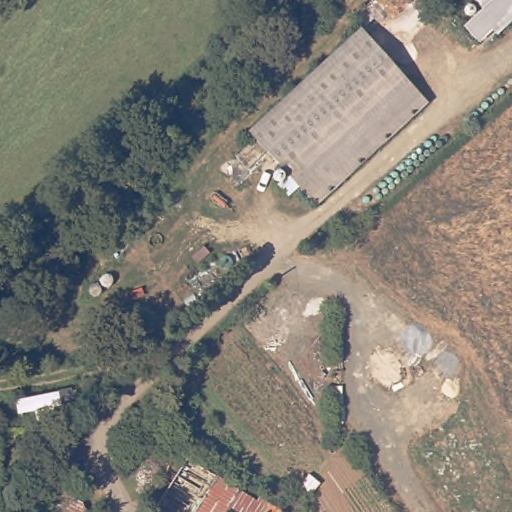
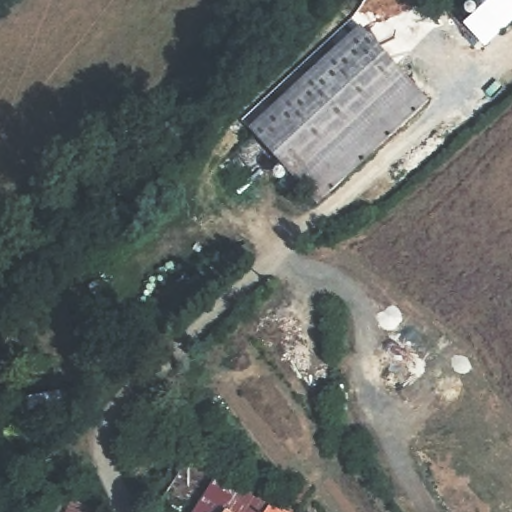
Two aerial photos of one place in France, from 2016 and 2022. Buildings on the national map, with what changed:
unchanged [(494,55),(459,22),(479,4),(475,0),(512,0),(512,37),(494,55)]
unchanged [(367,37),(419,89),(308,191),(258,139),(367,37)]
unchanged [(261,512),(258,512),(247,506),(243,512),(155,512),(154,511),(189,456),(268,501),(261,512)]
unchanged [(83,495),(73,490),(70,495),(53,487),(58,479),(63,480),(66,472),(78,477),(89,483),(83,495)]
unchanged [(286,512),(261,512),(268,501),(286,512)]
unchanged [(258,512),(243,512),(247,506),(258,512)]
unchanged [(94,512),(83,512),(84,508),(94,512)]

